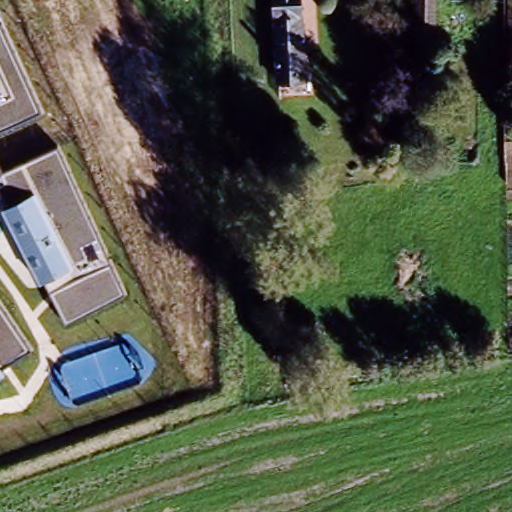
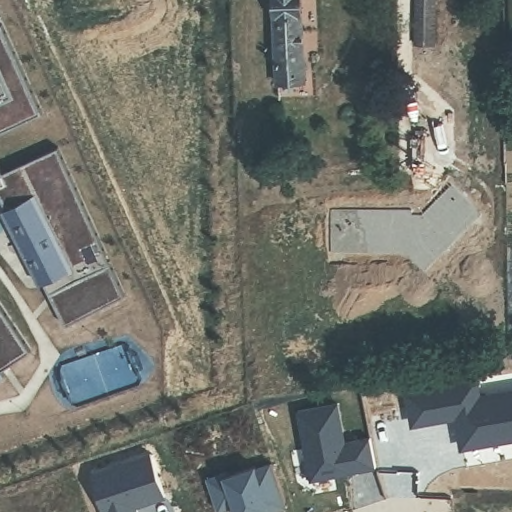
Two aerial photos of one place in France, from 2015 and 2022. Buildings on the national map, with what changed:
unchanged [(272,0),(305,0),(305,80),(276,81),(272,0)]
unchanged [(412,0),(430,0),(430,1),(430,4),(431,54),(411,55),(412,5),(412,2),(412,0)]
unchanged [(2,24),(41,112),(0,130),(0,25),(2,24)]
unchanged [(1,172),(58,147),(124,292),(66,322),(46,282),(41,285),(2,210),(6,207),(0,193),(0,169),(1,172)]
unchanged [(31,350),(1,367),(6,373),(0,378),(0,303),(31,350)]
new [(413,424),(408,392),(476,380),(479,396),(512,390),(512,438),(482,443),(463,447),(457,416),(413,424)]
new [(338,403),(345,442),(371,437),(376,466),(312,479),(298,411),(338,403)]
new [(151,453),(165,496),(149,502),(147,495),(134,500),(136,507),(138,512),(105,512),(92,473),(151,453)]
new [(227,472),(228,475),(256,466),(257,468),(272,462),(287,506),(270,511),(269,508),(260,512),(239,512),(236,504),(219,510),(209,478),(227,472)]

